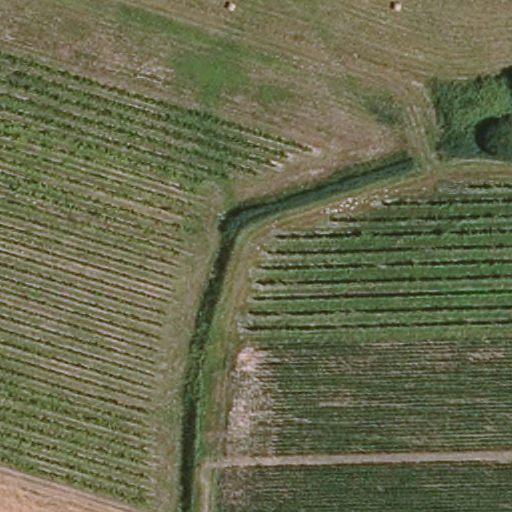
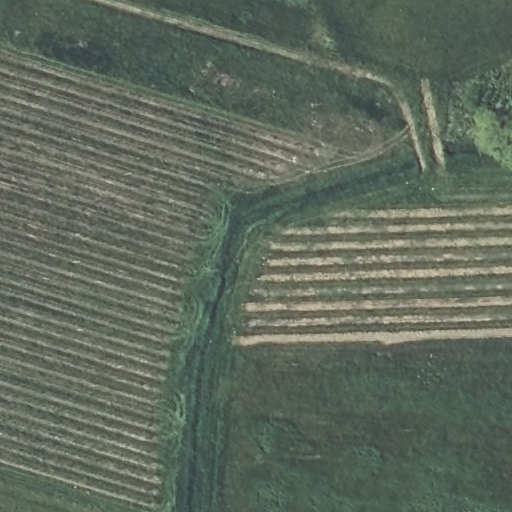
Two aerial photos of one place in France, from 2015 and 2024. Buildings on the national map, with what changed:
[]

